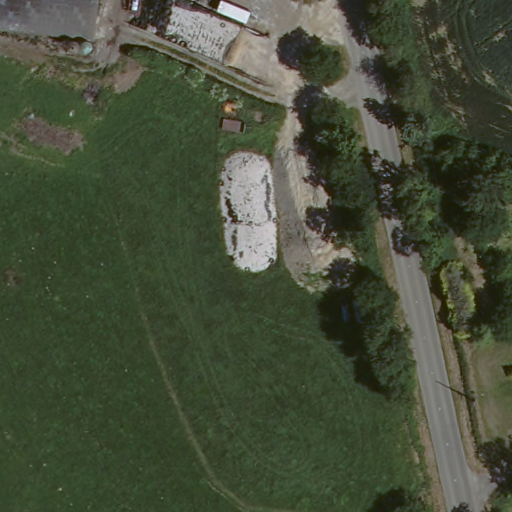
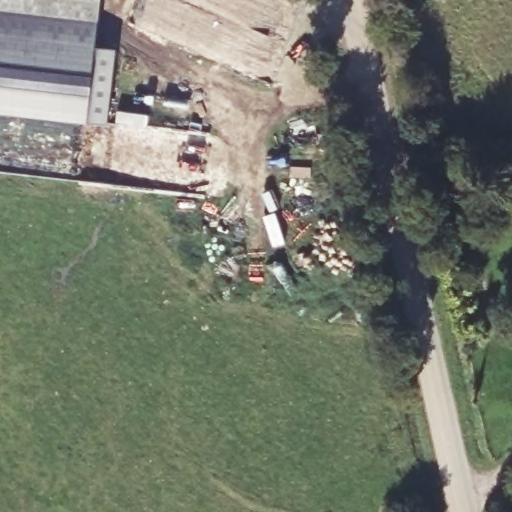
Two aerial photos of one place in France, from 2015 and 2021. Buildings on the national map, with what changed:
new [(84,120),(0,110),(0,0),(99,0),(92,47),(115,51),(106,121),(84,120)]
unchanged [(512,275),(511,272),(512,272),(512,275)]

